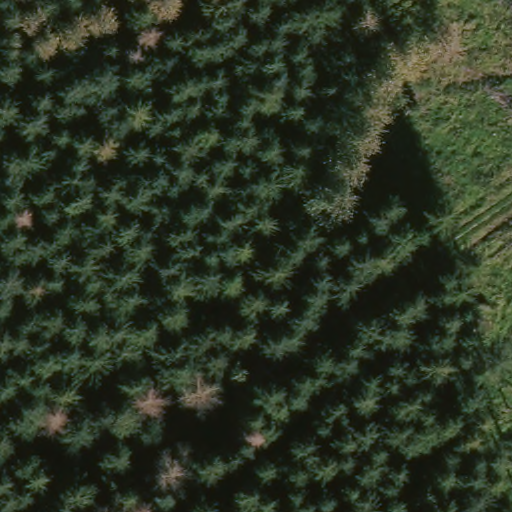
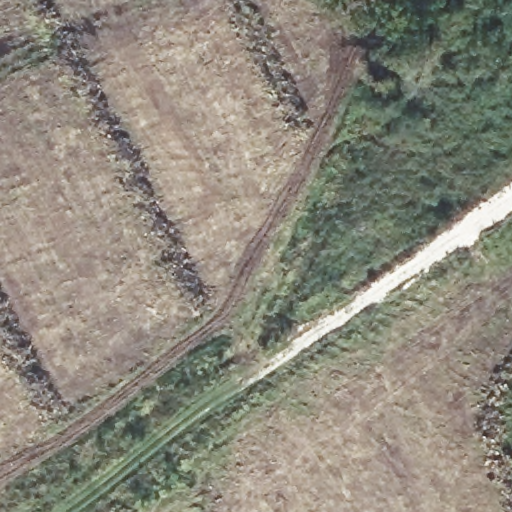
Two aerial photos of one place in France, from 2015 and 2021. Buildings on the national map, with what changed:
[]

